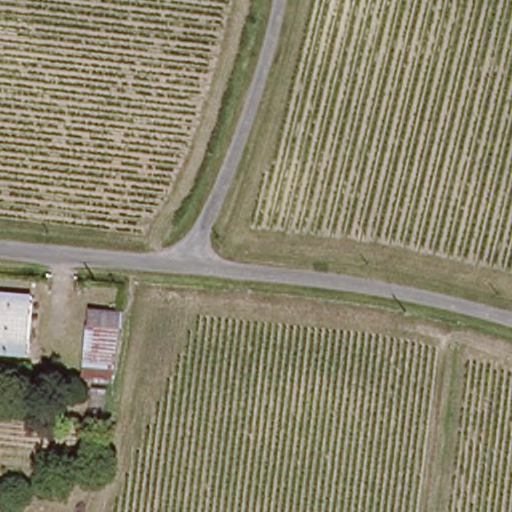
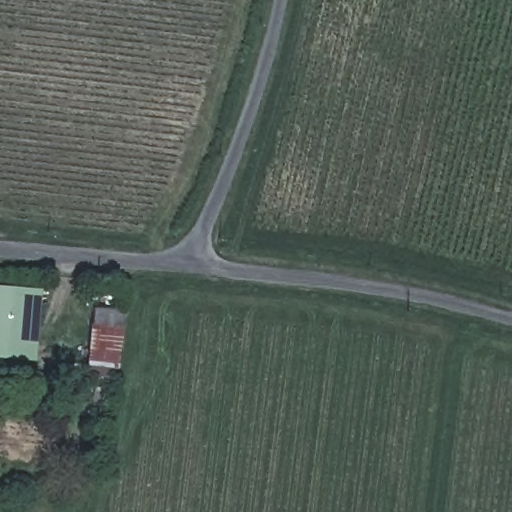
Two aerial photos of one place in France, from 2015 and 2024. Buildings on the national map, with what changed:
unchanged [(0,350),(0,297),(23,300),(33,301),(27,353),(17,352),(0,350)]
unchanged [(84,316),(116,319),(111,370),(79,367),(84,316)]

